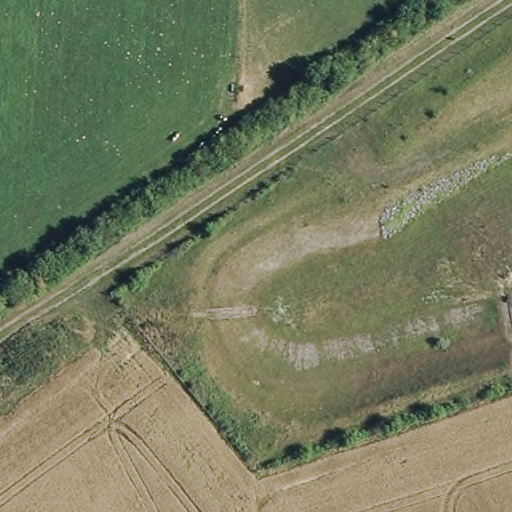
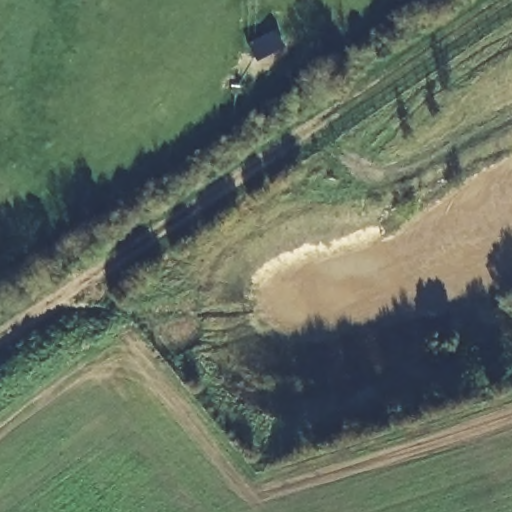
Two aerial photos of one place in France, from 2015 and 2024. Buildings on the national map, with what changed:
[]

